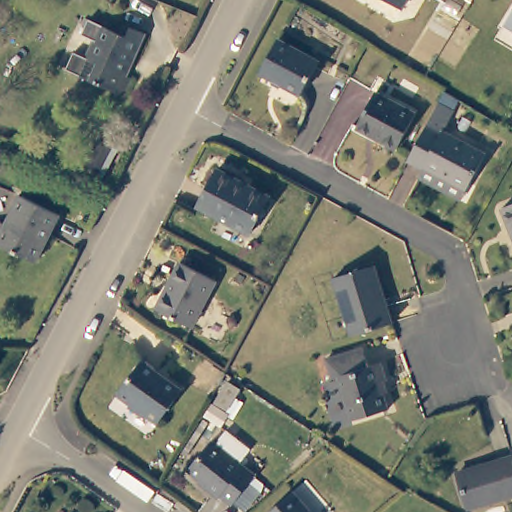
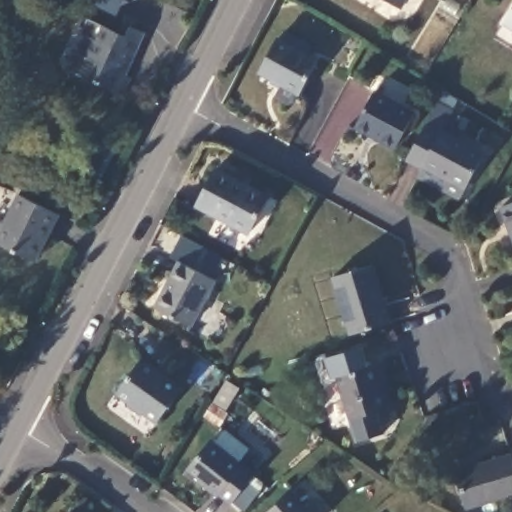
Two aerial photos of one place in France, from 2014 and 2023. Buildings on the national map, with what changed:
unchanged [(386,0),(405,0),(400,8),(386,0)]
unchanged [(512,11),(512,32),(502,27),(512,11)]
unchanged [(127,96),(115,91),(66,72),(75,52),(84,56),(94,36),(86,32),(92,21),(118,32),(123,20),(147,29),(134,59),(128,57),(122,72),(134,77),(127,96)]
unchanged [(317,62),(300,96),(260,75),(277,41),(317,62)]
unchanged [(413,114),(395,147),(355,127),(373,92),(413,114)]
unchanged [(410,160),(439,107),(452,114),(443,132),(485,152),(469,185),(462,199),(418,176),(423,166),(410,160)]
unchanged [(252,234),(199,207),(219,170),(272,197),(252,234)]
unchanged [(4,227),(20,194),(60,213),(35,264),(0,248),(0,225),(4,227)]
unchanged [(512,224),(505,207),(512,205),(512,224)]
unchanged [(176,261),(212,277),(189,323),(153,307),(176,261)]
unchanged [(372,267),(391,325),(352,337),(333,279),(372,267)]
unchanged [(352,418),(338,379),(328,376),(323,360),(360,347),(366,366),(380,361),(385,377),(379,380),(388,406),(352,418)]
unchanged [(183,394),(161,425),(149,415),(147,418),(120,397),(145,362),(183,394)]
unchanged [(231,410),(219,404),(231,383),(243,390),(231,410)]
unchanged [(214,437),(255,475),(231,503),(220,493),(216,496),(190,466),(214,437)]
unchanged [(477,461),(509,451),(512,461),(512,496),(463,511),(452,477),(475,470),(477,461)]
unchanged [(291,490),(310,512),(266,512),(291,490)]

